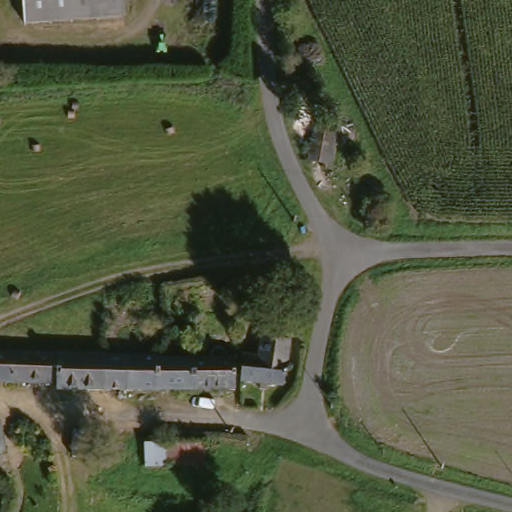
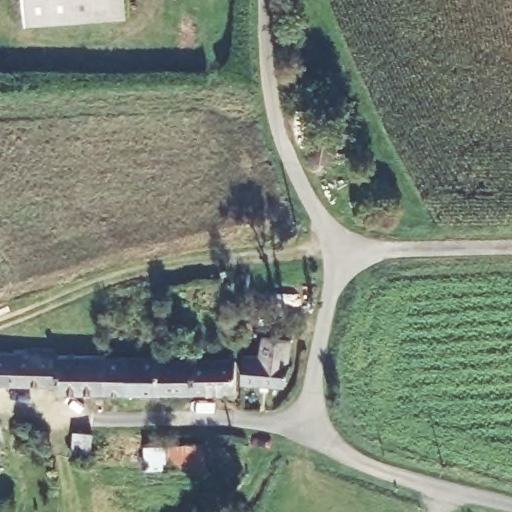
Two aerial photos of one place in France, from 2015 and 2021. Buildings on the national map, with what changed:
unchanged [(20,22),(19,0),(120,0),(121,20),(20,22)]
unchanged [(311,157),(315,126),(341,132),(336,164),(311,157)]
unchanged [(256,357),(259,335),(287,339),(279,387),(236,381),(236,355),(256,357)]
unchanged [(53,391),(53,384),(0,383),(0,354),(100,355),(124,355),(157,356),(156,393),(124,392),(100,392),(53,391)]
unchanged [(229,357),(226,393),(156,393),(157,356),(229,357)]
unchanged [(154,470),(154,448),(194,448),(195,470),(154,470)]

